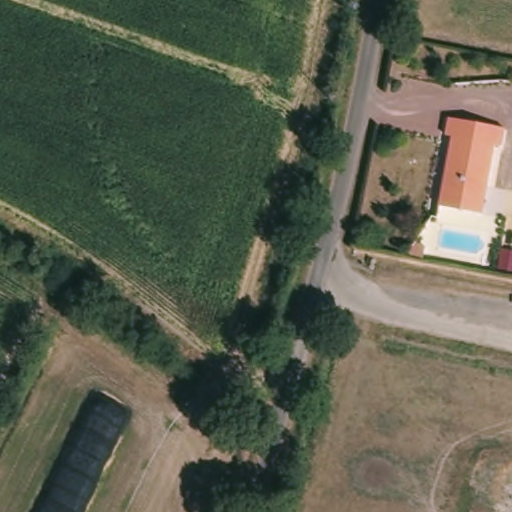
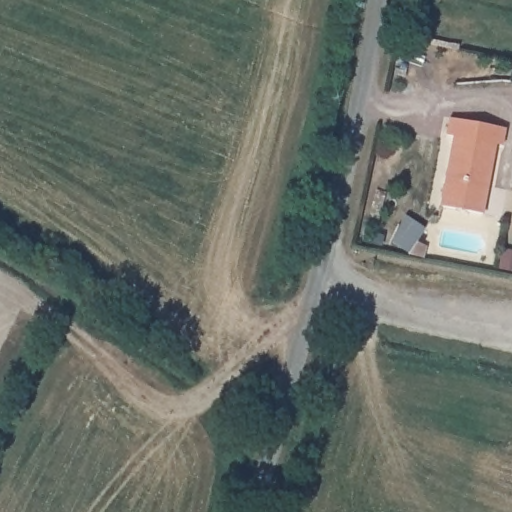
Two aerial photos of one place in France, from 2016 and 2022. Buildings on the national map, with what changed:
unchanged [(502,145),(494,144),(480,216),(440,208),(453,136),(444,134),(448,115),(505,127),(502,145)]

